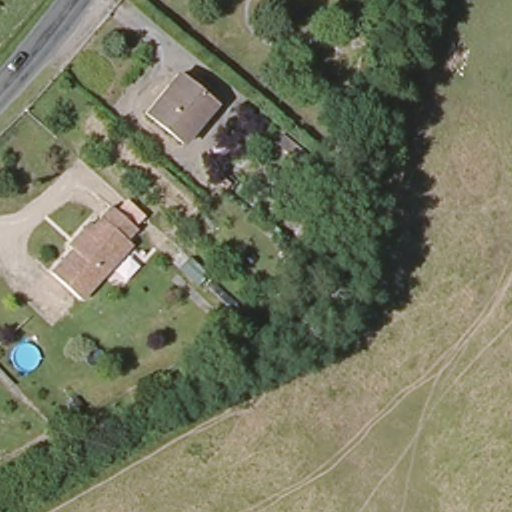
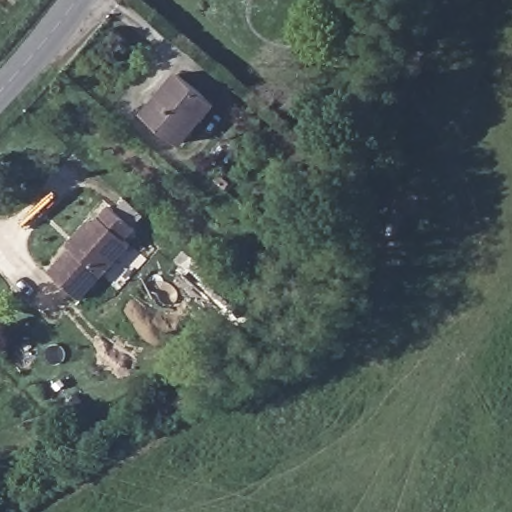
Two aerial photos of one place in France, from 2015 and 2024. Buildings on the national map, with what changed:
unchanged [(160,98),(181,73),(218,103),(187,140),(155,116),(149,111),(160,98)]
unchanged [(286,129),(315,152),(307,162),(277,139),(286,129)]
unchanged [(90,224),(109,202),(134,225),(123,236),(128,241),(78,297),(48,270),(70,247),(65,244),(75,231),(86,220),(90,224)]

